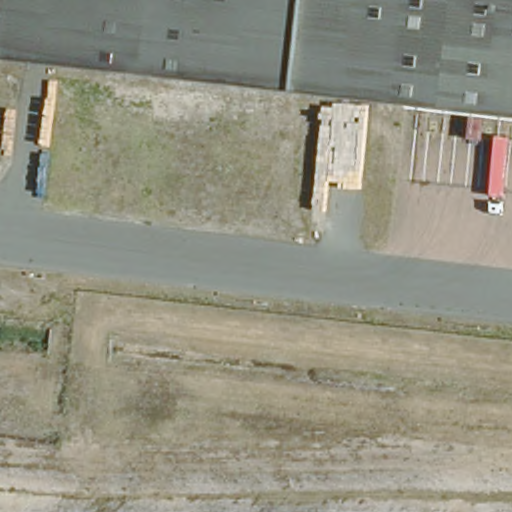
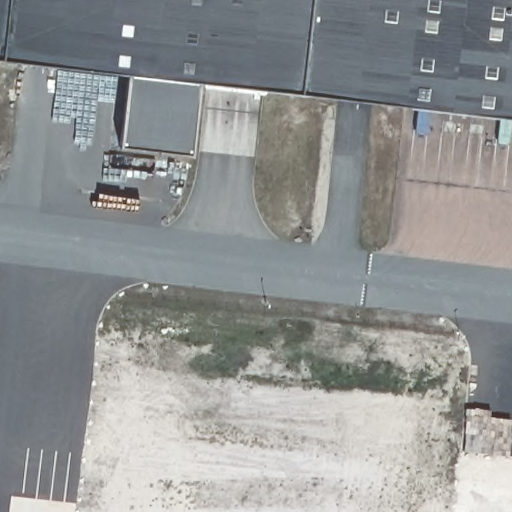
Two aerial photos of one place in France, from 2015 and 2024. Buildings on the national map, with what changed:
unchanged [(5,0),(0,42),(0,0),(5,0)]
unchanged [(0,50),(0,42),(5,0),(312,0),(299,92),(0,50)]
unchanged [(312,0),(512,0),(512,121),(299,92),(312,0)]
new [(200,78),(192,154),(119,146),(128,68),(200,78)]

